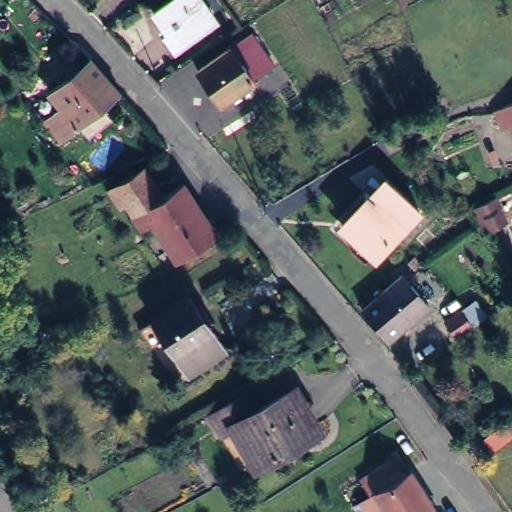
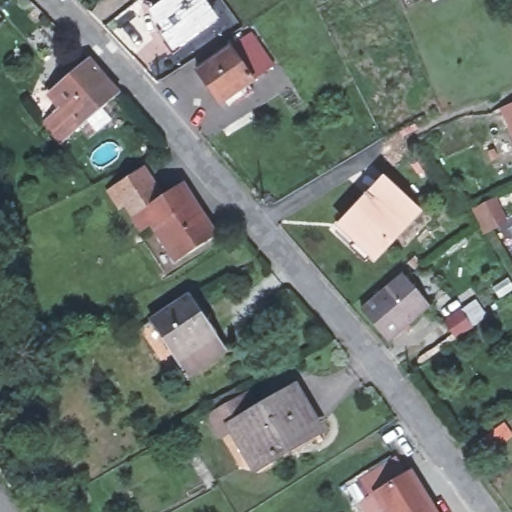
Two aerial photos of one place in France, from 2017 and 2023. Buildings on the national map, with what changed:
unchanged [(165,0),(205,0),(215,16),(175,44),(165,30),(167,28),(154,8),(165,0)]
unchanged [(226,47),(232,56),(252,43),(268,66),(248,80),(249,81),(216,105),(192,70),(226,47)]
unchanged [(62,142),(45,122),(62,108),(50,94),(92,61),(122,95),(62,142)]
unchanged [(503,104),(512,100),(512,126),(502,104),(503,104)]
unchanged [(30,105),(38,116),(25,125),(18,115),(30,105)]
unchanged [(47,133),(53,140),(50,143),(43,136),(47,133)]
unchanged [(135,212),(114,183),(143,163),(164,191),(135,212)]
unchanged [(182,179),(218,231),(178,257),(152,219),(142,225),(135,212),(164,191),(182,179)]
unchanged [(385,180),(420,211),(377,257),(343,227),(385,180)]
unchanged [(496,199),(509,220),(488,234),(474,211),(496,199)]
unchanged [(375,299),(372,295),(378,290),(382,294),(402,276),(430,307),(388,342),(362,310),(375,299)]
unchanged [(153,316),(157,313),(190,292),(222,341),(223,344),(188,368),(186,365),(153,316)]
unchanged [(251,387),(262,406),(298,384),(323,426),(262,463),(245,435),(230,444),(212,410),(251,387)]
unchanged [(512,435),(512,436),(492,452),(482,439),(503,424),(512,435)]
unchanged [(386,512),(380,504),(367,512),(362,512),(352,497),(370,487),(406,466),(433,512),(386,512)]

